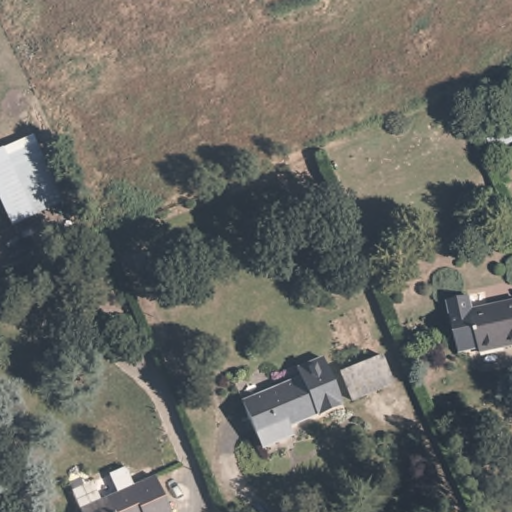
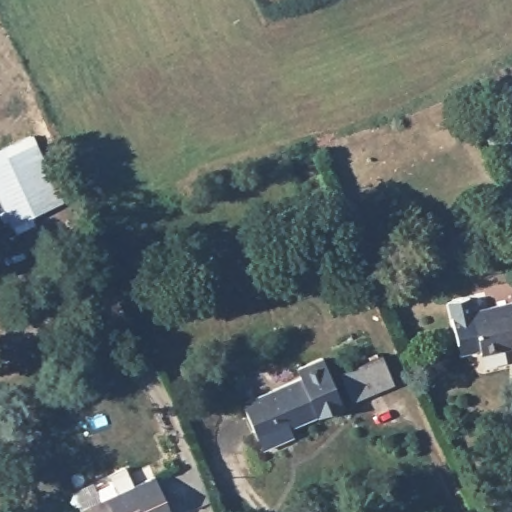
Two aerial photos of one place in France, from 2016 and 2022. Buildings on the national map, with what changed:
unchanged [(7,227),(0,211),(0,149),(5,147),(39,217),(7,227)]
unchanged [(456,311),(475,302),(481,312),(512,298),(512,349),(499,355),(497,350),(478,359),(473,350),(456,311)]
unchanged [(254,438),(251,424),(243,382),(300,368),(299,357),(326,350),(336,392),(339,403),(308,411),(287,417),(289,430),(254,438)]
unchanged [(390,392),(346,402),(340,371),(382,360),(390,392)]
unchanged [(75,510),(158,472),(176,512),(76,512),(75,510)]

